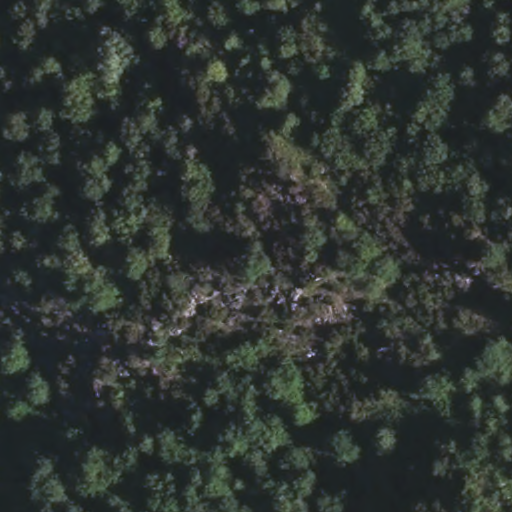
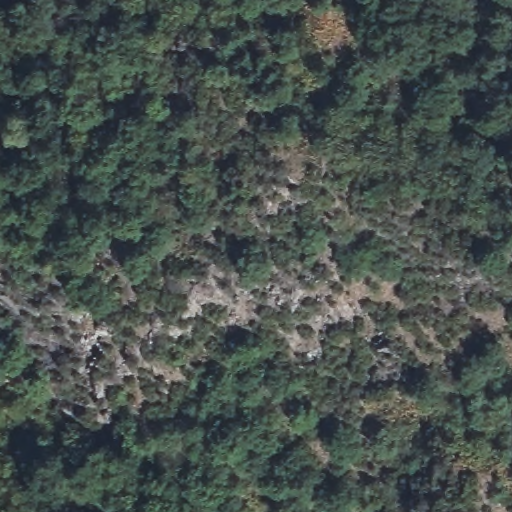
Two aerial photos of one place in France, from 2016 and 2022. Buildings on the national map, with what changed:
[]

